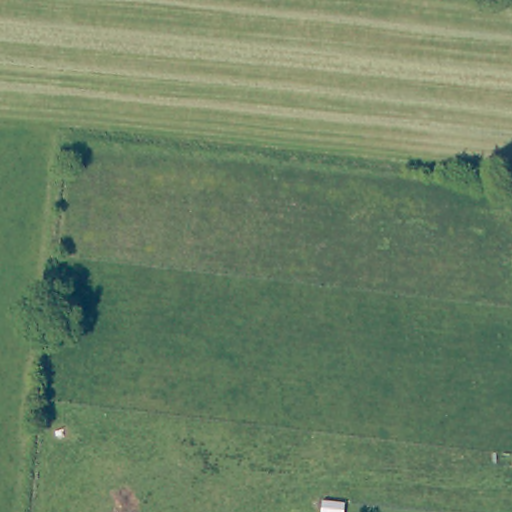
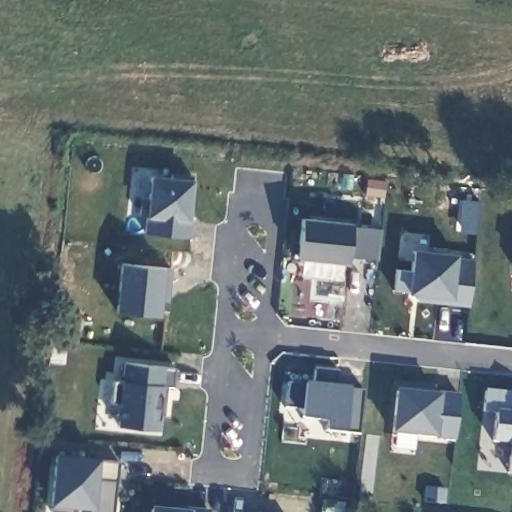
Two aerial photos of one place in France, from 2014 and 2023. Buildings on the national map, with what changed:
new [(193,222),(191,240),(146,236),(148,217),(151,177),(194,181),(189,221),(193,222)]
new [(351,228),(382,231),(379,260),(349,256),(348,264),(298,259),(302,219),(352,224),(351,228)]
new [(457,255),(457,257),(474,260),(469,307),(417,302),(418,295),(408,293),(393,292),(395,270),(411,271),(414,251),(457,255)]
new [(120,263),(165,270),(160,317),(116,312),(120,263)]
new [(120,403),(112,402),(114,385),(122,386),(125,363),(165,368),(175,370),(174,388),(165,387),(164,417),(159,417),(158,431),(117,427),(120,403)]
new [(289,382),(305,383),(314,384),(315,369),(338,371),(337,386),(350,387),(349,390),(364,391),(361,432),(344,431),(326,430),(327,420),(303,417),(304,407),(286,406),(289,382)]
new [(397,382),(444,387),(444,393),(460,394),(456,440),(436,438),(436,437),(392,433),(396,390),(397,382)]
new [(512,392),(512,474),(508,473),(509,457),(511,444),(492,442),(496,412),(483,411),(486,390),(512,392)]
new [(97,461),(119,463),(113,512),(92,512),(93,508),(74,507),(73,512),(57,512),(51,512),(51,504),(49,503),(54,454),(98,458),(97,461)]
new [(187,508),(209,511),(209,512),(187,512),(187,508)]
new [(151,509),(187,512),(151,512),(151,509)]

